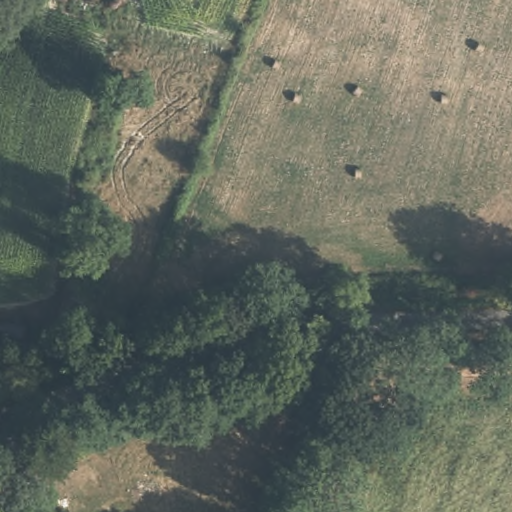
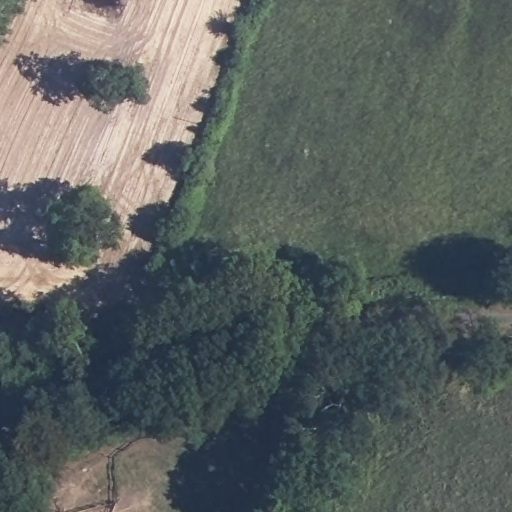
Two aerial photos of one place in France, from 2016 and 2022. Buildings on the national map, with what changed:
[]

